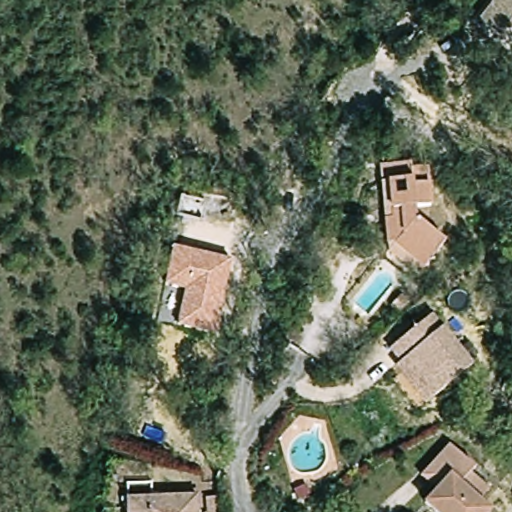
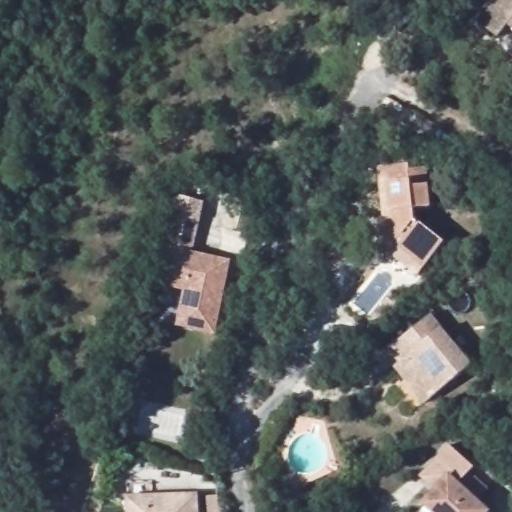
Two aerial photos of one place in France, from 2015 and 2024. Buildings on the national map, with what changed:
unchanged [(507,27),(497,39),(475,21),(490,0),(512,0),(512,32),(507,27)]
unchanged [(373,243),(375,234),(390,158),(419,164),(419,170),(434,172),(427,211),(412,207),(409,217),(440,239),(423,265),(417,273),(373,243)]
unchanged [(231,261),(216,333),(177,326),(183,291),(165,287),(173,247),(231,261)]
unchanged [(433,311),(475,363),(431,401),(390,350),(433,311)]
unchanged [(471,471),(489,485),(480,497),(494,508),(491,512),(433,512),(426,506),(437,492),(421,479),(427,472),(447,446),(474,467),(471,471)]
unchanged [(201,490),(201,512),(131,512),(131,490),(201,490)]

